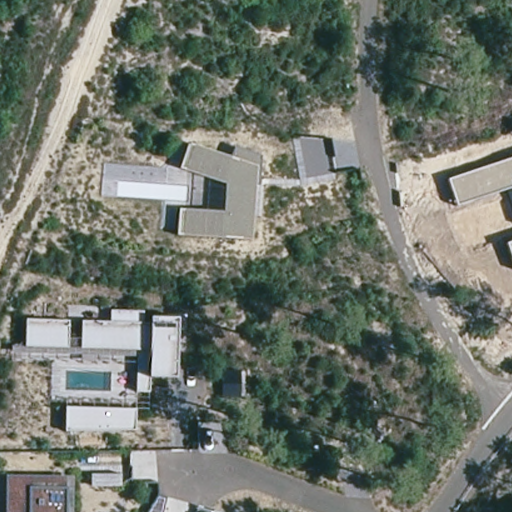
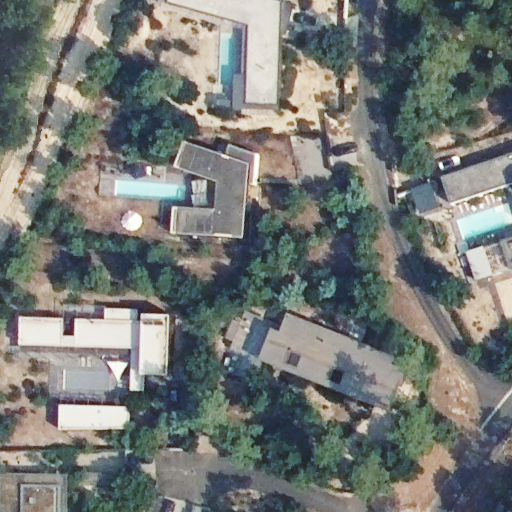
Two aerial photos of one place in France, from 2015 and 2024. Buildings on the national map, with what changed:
new [(287,5),(284,112),(223,110),(223,100),(240,100),(240,77),(253,77),(255,27),(174,4),(175,0),(270,0),(287,5)]
unchanged [(330,141),(336,171),(307,177),(300,139),(330,141)]
unchanged [(227,156),(259,165),(252,236),(226,237),(182,235),(183,210),(227,211),(228,181),(185,169),(193,142),(227,156)]
unchanged [(449,181),(512,159),(512,186),(456,208),(449,181)]
unchanged [(512,243),(512,262),(507,245),(512,243)]
new [(492,245),(502,272),(486,278),(476,250),(492,245)]
unchanged [(115,320),(115,309),(145,310),(146,322),(153,322),(153,316),(180,316),(179,375),(153,375),(154,392),(142,392),(141,350),(84,348),(82,320),(115,320)]
new [(286,333),(293,315),(409,361),(404,372),(409,375),(393,413),(265,361),(278,330),(286,333)]
unchanged [(72,346),(30,347),(29,319),(72,318),(72,346)]
unchanged [(134,433),(65,431),(65,408),(134,410),(134,433)]
unchanged [(69,512),(6,512),(6,475),(69,473),(69,512)]

